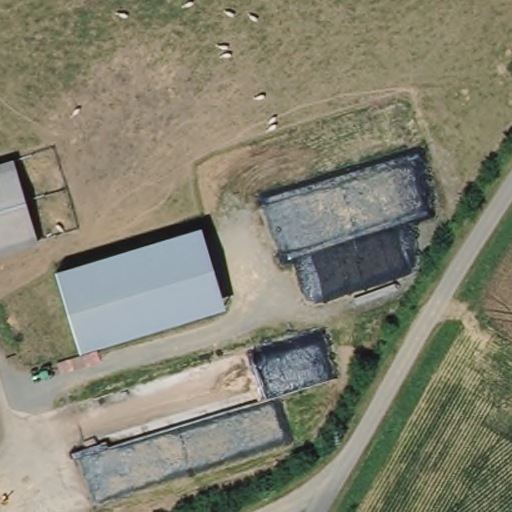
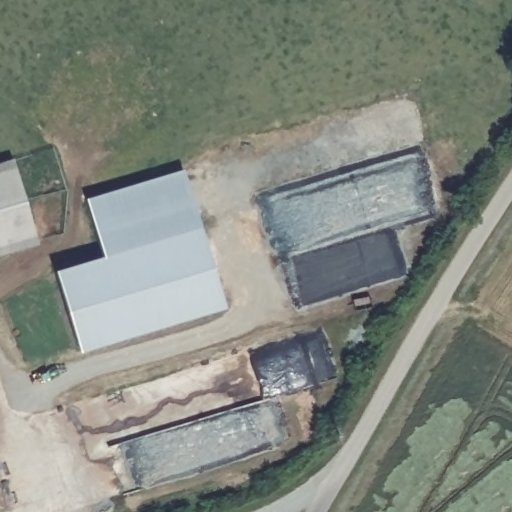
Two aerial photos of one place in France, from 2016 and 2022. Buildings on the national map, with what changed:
unchanged [(0,167),(16,162),(32,198),(49,241),(0,255),(0,167)]
new [(86,199),(184,167),(197,230),(104,258),(86,199)]
unchanged [(197,230),(221,308),(84,350),(82,350),(77,352),(60,296),(56,281),(53,273),(197,230)]

